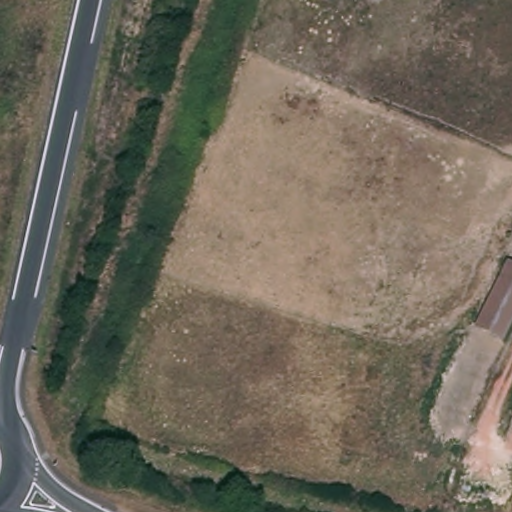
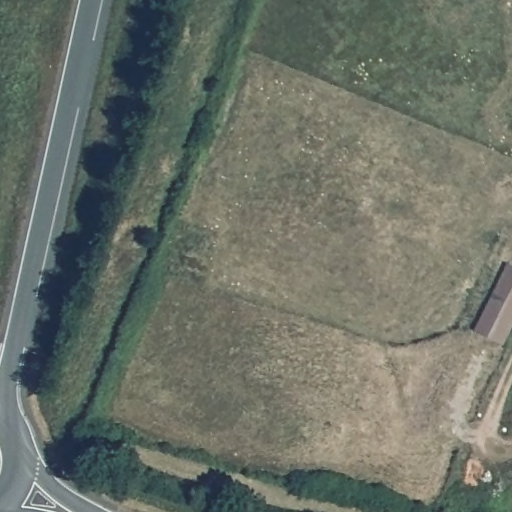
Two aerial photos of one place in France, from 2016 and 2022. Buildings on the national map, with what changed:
unchanged [(507,260),(512,261),(512,323),(503,342),(475,329),(507,260)]

